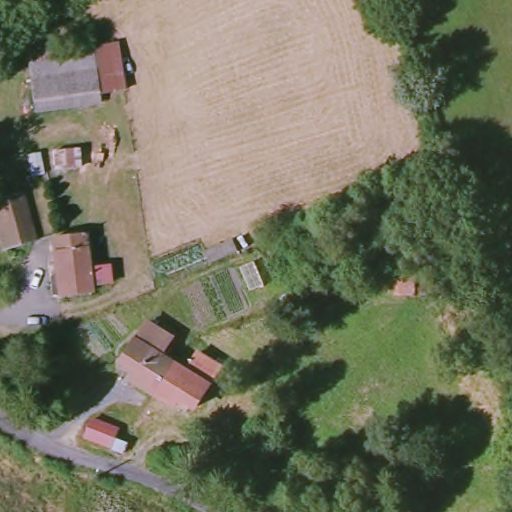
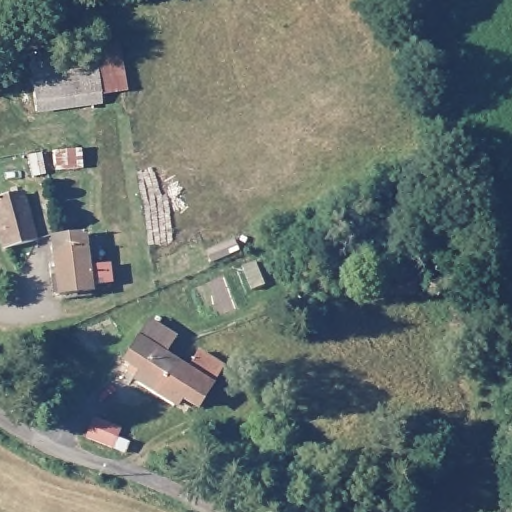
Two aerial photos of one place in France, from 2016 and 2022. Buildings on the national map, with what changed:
unchanged [(32,55),(93,44),(90,19),(105,17),(108,40),(122,42),(128,90),(105,92),(107,104),(37,115),(32,55)]
unchanged [(6,251),(0,225),(0,203),(27,195),(40,242),(6,251)]
unchanged [(110,282),(90,283),(90,288),(58,288),(58,245),(67,244),(67,229),(93,230),(91,266),(110,266),(110,282)]
unchanged [(139,390),(145,377),(122,368),(148,317),(175,331),(165,352),(176,358),(158,399),(139,390)]
unchanged [(188,398),(180,410),(158,399),(176,358),(194,366),(205,346),(227,357),(203,406),(188,398)]
unchanged [(107,430),(127,435),(123,454),(102,449),(107,430)]
unchanged [(285,485),(307,508),(303,512),(281,512),(270,500),(285,485)]

